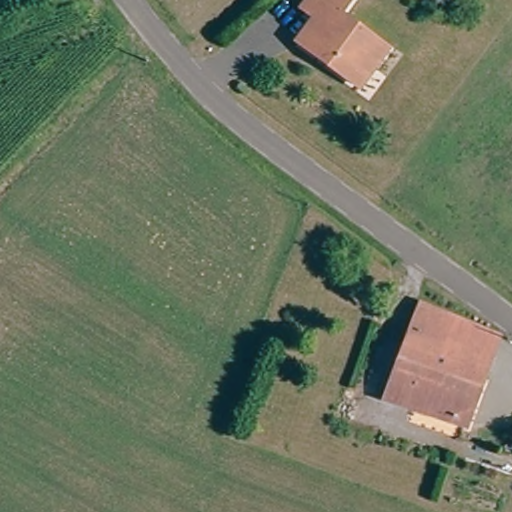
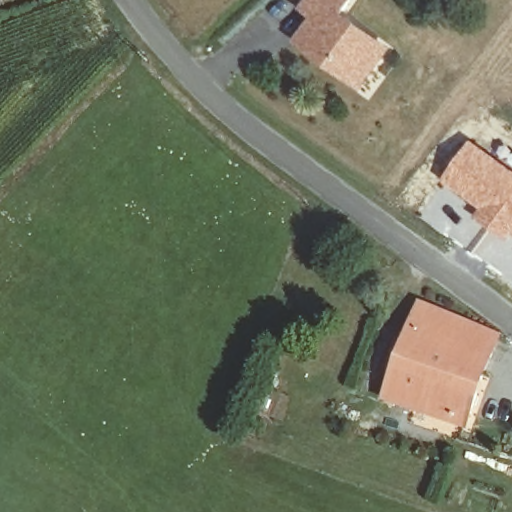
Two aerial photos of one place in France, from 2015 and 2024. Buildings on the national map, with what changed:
unchanged [(353,76),(339,64),(320,49),(304,36),(322,14),(310,4),(313,0),(357,0),(357,1),(350,11),(395,46),(377,69),(364,85),(353,76)]
new [(512,168),(512,238),(510,237),(506,242),(471,215),(477,208),(442,183),(471,140),(512,168)]
unchanged [(467,426),(388,397),(421,309),(500,339),(467,426)]
unchanged [(502,459),(476,453),(481,436),(506,443),(502,459)]

